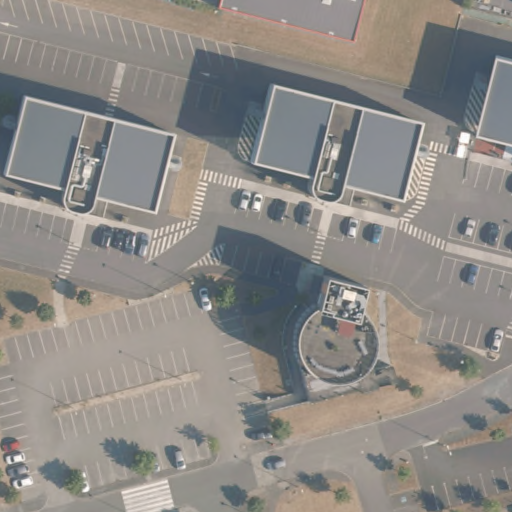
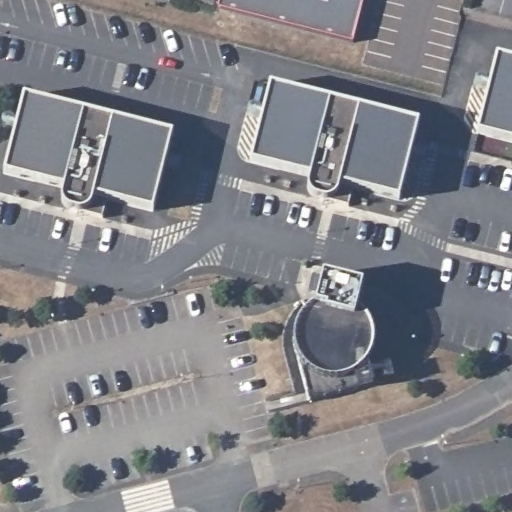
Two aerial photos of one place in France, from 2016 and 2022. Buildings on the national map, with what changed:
unchanged [(351,42),(216,8),(218,0),(361,0),(351,42)]
unchanged [(481,117),(496,57),(512,62),(512,124),(481,117)]
unchanged [(319,181),(317,180),(315,178),(313,177),(312,174),(312,172),(311,170),(312,167),(313,160),(255,146),(269,87),(418,123),(403,183),(357,171),(353,190),(321,182),(319,181)]
unchanged [(73,194),(71,193),(69,191),(67,189),(66,187),(65,185),(65,182),(66,180),(66,179),(67,173),(9,159),(23,99),(172,136),(157,195),(111,184),(106,203),(75,195),(73,194)]
unchanged [(368,286),(362,309),(367,313),(371,318),(374,323),(377,329),(378,335),(378,347),(377,353),(374,359),(371,364),(369,368),(367,369),(363,373),(357,376),(352,379),(346,380),(339,381),(333,380),(327,379),(322,376),(316,373),(312,369),(308,364),(304,359),(302,353),(301,347),(300,341),(301,335),(302,329),(304,323),(308,318),(312,313),(316,309),(321,307),(328,276),(368,286)]

